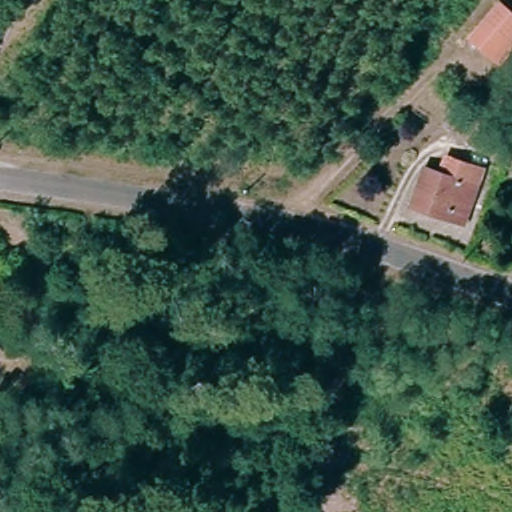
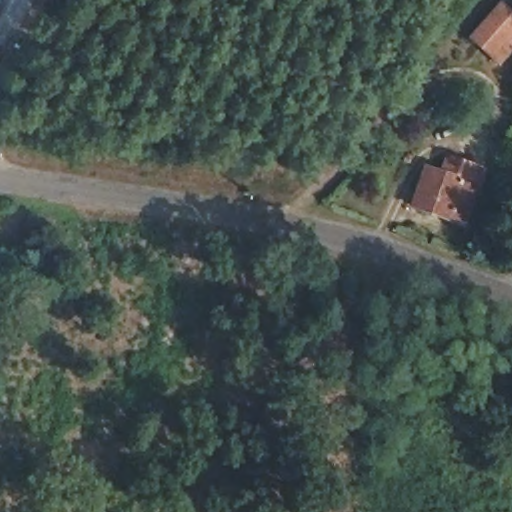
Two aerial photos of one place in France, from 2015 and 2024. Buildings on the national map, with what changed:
unchanged [(498,62),(469,35),(498,2),(512,14),(512,58),(504,67),(498,62)]
unchanged [(413,210),(425,172),(444,179),(451,157),(478,166),(483,168),(476,189),(464,227),(413,210)]

